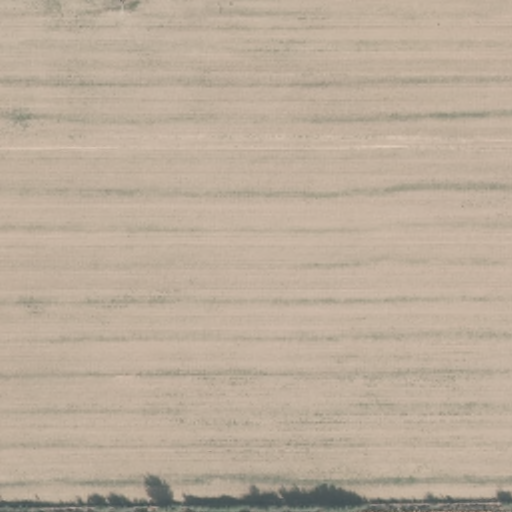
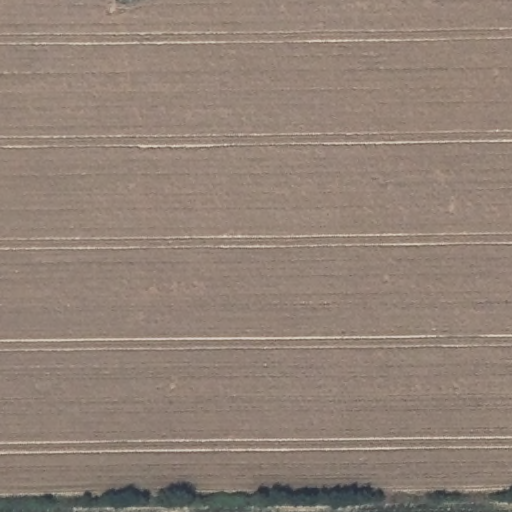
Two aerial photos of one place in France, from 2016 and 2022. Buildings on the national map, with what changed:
[]

